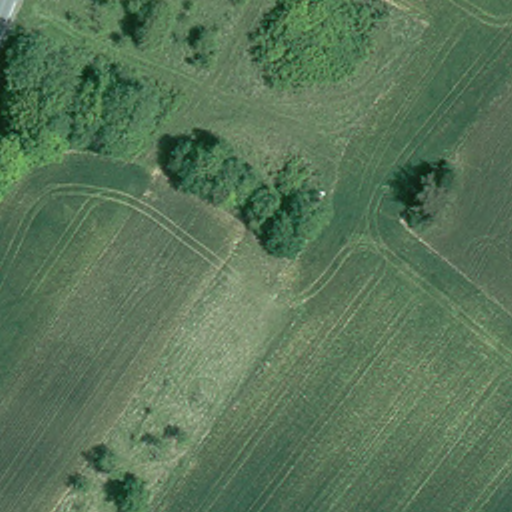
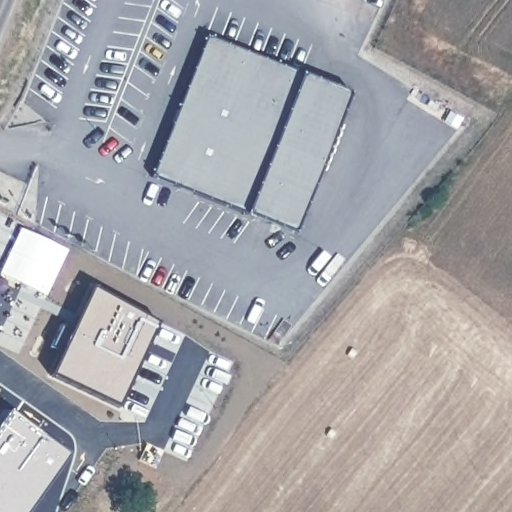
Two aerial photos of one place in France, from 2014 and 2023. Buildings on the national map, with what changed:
new [(304,75),(349,94),(296,231),(249,213),(153,177),(208,37),(304,75)]
new [(50,348),(60,325),(71,331),(93,286),(159,323),(119,409),(50,376),(61,353),(50,348)]
new [(11,411),(73,455),(32,512),(0,512),(0,428),(11,411)]

